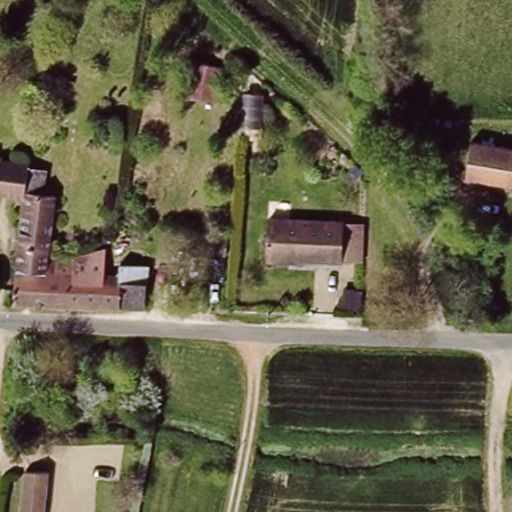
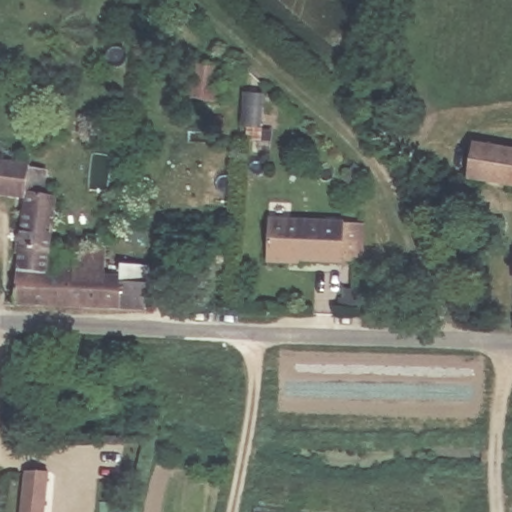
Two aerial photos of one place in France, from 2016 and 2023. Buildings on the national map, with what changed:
unchanged [(184,60),(220,62),(217,102),(180,98),(184,60)]
unchanged [(473,179),(477,145),(499,147),(512,149),(512,185),(473,179)]
unchanged [(0,190),(0,162),(22,164),(21,172),(39,173),(37,197),(47,197),(42,269),(14,267),(20,192),(0,190)]
unchanged [(342,222),(339,262),(286,259),(286,262),(265,261),(267,217),(342,222)]
unchanged [(84,306),(12,302),(14,267),(42,269),(47,269),(47,263),(63,264),(63,275),(77,275),(77,265),(87,266),(84,306)]
unchanged [(137,267),(137,286),(145,286),(144,308),(90,306),(84,306),(87,266),(137,267)]
unchanged [(51,462),(47,512),(27,512),(30,462),(51,462)]

